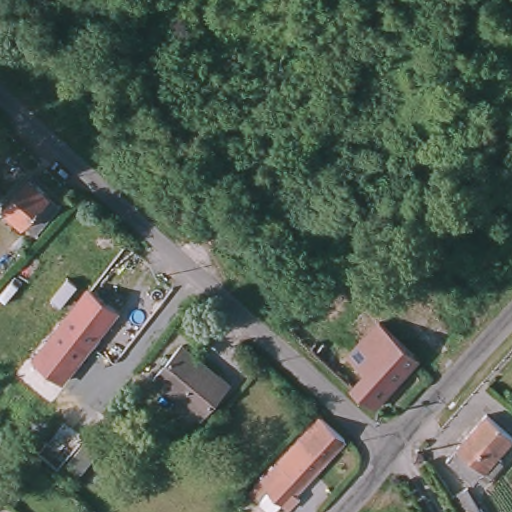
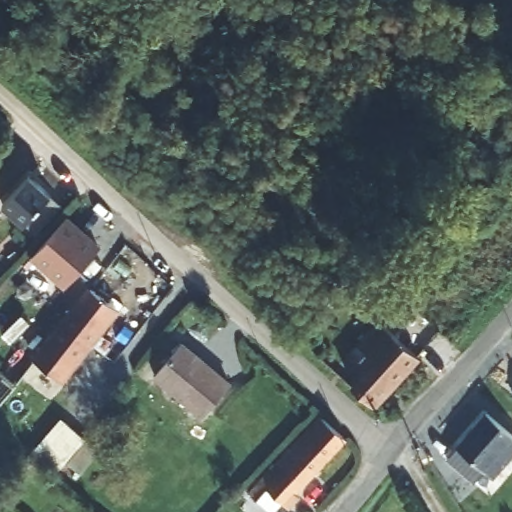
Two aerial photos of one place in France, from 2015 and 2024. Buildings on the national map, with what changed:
unchanged [(28,177),(59,205),(39,228),(7,200),(28,177)]
new [(66,287),(32,257),(65,219),(99,249),(66,287)]
unchanged [(44,362),(60,333),(50,327),(82,287),(118,312),(67,381),(44,362)]
unchanged [(327,341),(357,367),(362,363),(357,358),(388,325),(421,355),(374,408),(315,354),(327,341)]
unchanged [(194,417),(151,381),(180,345),(224,382),(194,417)]
unchanged [(291,497),(297,502),(288,512),(287,512),(280,507),(275,512),(265,512),(251,497),(264,481),(265,476),(294,444),(288,439),(312,413),(344,440),(291,497)]
unchanged [(487,416),(512,437),(512,442),(497,460),(504,466),(496,475),(489,470),(476,486),(449,462),(487,416)]
unchanged [(62,468),(80,446),(91,456),(74,478),(62,468)]
unchanged [(472,493),(485,512),(462,512),(457,503),(472,493)]

